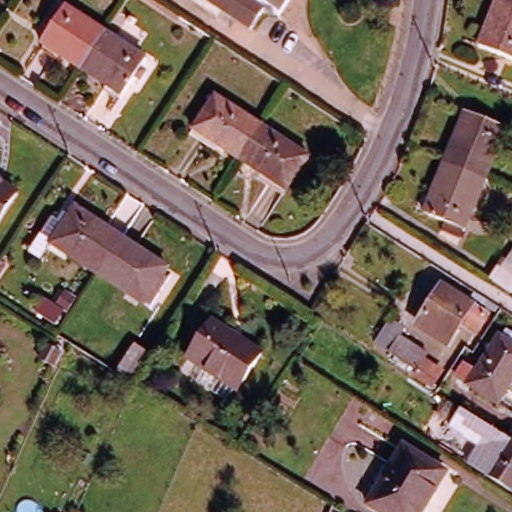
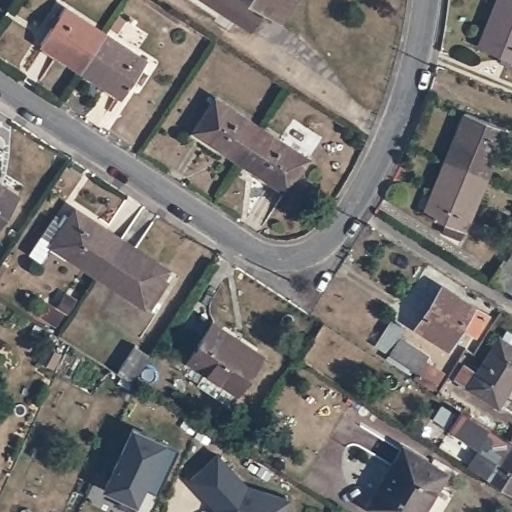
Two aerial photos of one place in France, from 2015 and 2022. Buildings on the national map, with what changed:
unchanged [(289,0),(278,16),(268,8),(254,29),(210,0),(289,0)]
unchanged [(512,57),(482,45),(500,0),(512,5),(512,57)]
unchanged [(512,0),(512,5),(500,0),(512,0)]
unchanged [(53,21),(47,18),(52,10),(57,14),(63,5),(105,31),(81,68),(40,41),(53,21)]
unchanged [(140,78),(135,75),(122,94),(81,68),(105,31),(146,58),(140,68),(145,71),(140,78)]
unchanged [(192,132),(215,98),(262,128),(255,138),(240,162),(192,132)]
unchanged [(465,110),(505,126),(484,177),(467,170),(444,161),(465,110)]
unchanged [(255,138),(262,128),(309,158),(286,193),(240,162),(255,138)]
unchanged [(467,170),(484,177),(463,228),(461,235),(445,229),(449,222),(423,212),(444,161),(467,170)]
unchanged [(20,194),(0,223),(0,181),(20,194)]
unchanged [(43,235),(55,216),(62,220),(67,212),(72,217),(78,208),(125,239),(102,274),(55,244),(43,235)]
unchanged [(125,239),(170,268),(165,276),(172,280),(152,307),(102,274),(125,239)]
unchanged [(500,266),(503,268),(512,247),(512,286),(512,287),(494,280),(500,266)]
unchanged [(440,285),(482,311),(473,326),(460,317),(447,338),(418,320),(440,285)]
unchanged [(191,359),(215,322),(265,352),(240,390),(191,359)]
unchanged [(402,369),(397,367),(389,362),(405,336),(431,353),(429,357),(446,367),(433,389),(416,378),(402,369)]
unchanged [(117,372),(135,345),(149,355),(132,381),(117,372)]
unchanged [(470,360),(493,375),(512,346),(512,383),(502,399),(462,373),(470,360)]
unchanged [(37,364),(35,348),(50,348),(51,363),(37,364)]
unchanged [(477,420),(470,432),(450,421),(458,408),(477,420)]
new [(131,427),(177,448),(155,493),(141,487),(130,511),(115,503),(120,495),(102,487),(131,427)]
unchanged [(487,473),(490,471),(473,461),(495,427),(499,431),(512,438),(512,489),(499,481),(487,473)]
unchanged [(367,501),(402,442),(445,468),(418,512),(386,512),(367,501)]
new [(215,506),(188,478),(216,452),(245,484),(287,497),(282,512),(213,512),(215,506)]

